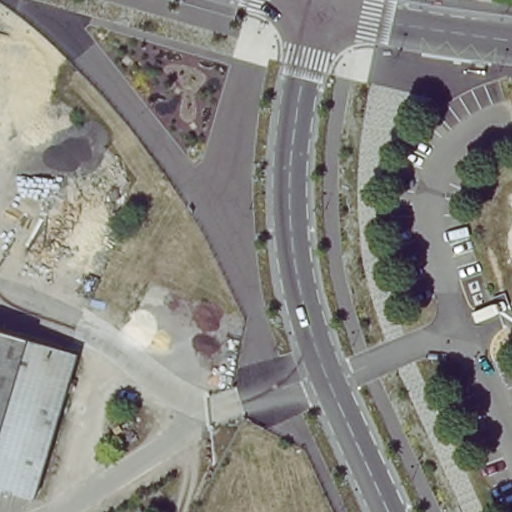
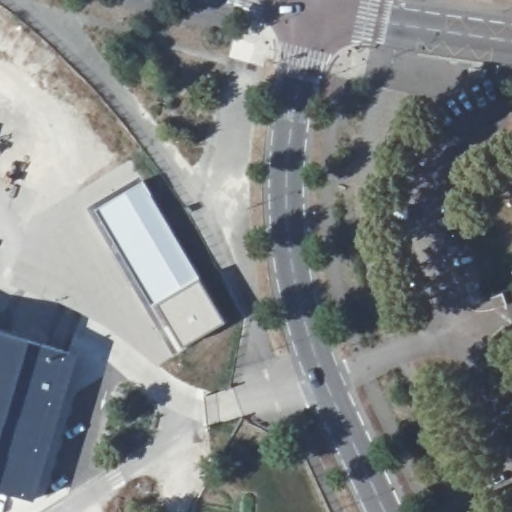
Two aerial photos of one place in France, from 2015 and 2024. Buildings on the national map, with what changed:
new [(142,178),(199,277),(154,303),(152,305),(92,209),(142,178)]
demolished [(77,303),(68,296),(81,274),(91,280),(77,303)]
new [(199,277),(224,321),(181,348),(154,303),(199,277)]
unchanged [(33,499),(0,489),(0,331),(77,354),(33,499)]

